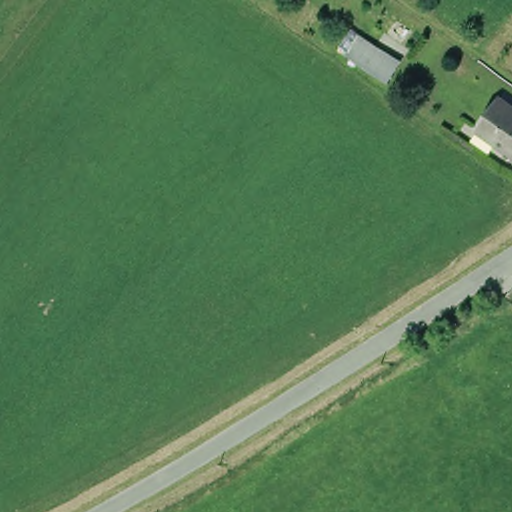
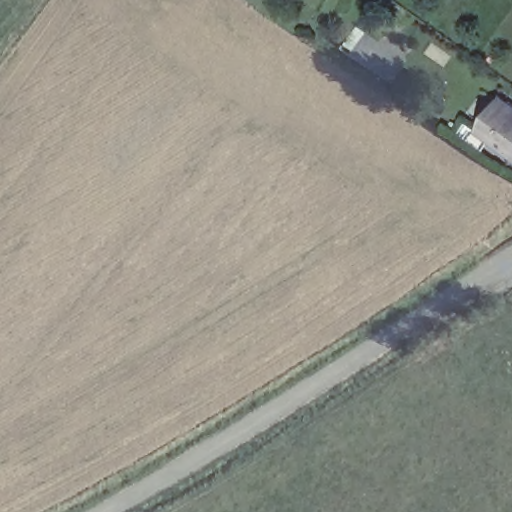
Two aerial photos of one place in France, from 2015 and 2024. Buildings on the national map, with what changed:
unchanged [(388,86),(347,58),(362,35),(403,63),(388,86)]
unchanged [(512,105),(512,154),(475,128),(499,95),(512,105)]

